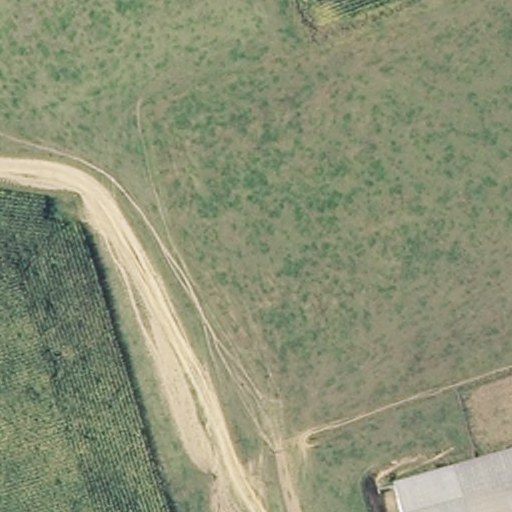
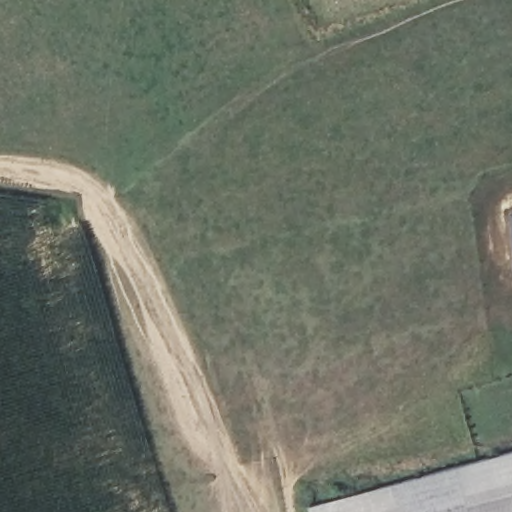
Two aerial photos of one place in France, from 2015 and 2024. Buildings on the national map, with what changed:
new [(512,228),(511,214),(512,214),(512,228)]
unchanged [(512,512),(405,512),(398,481),(512,455),(512,512)]
new [(398,481),(405,512),(309,512),(307,506),(398,481)]

